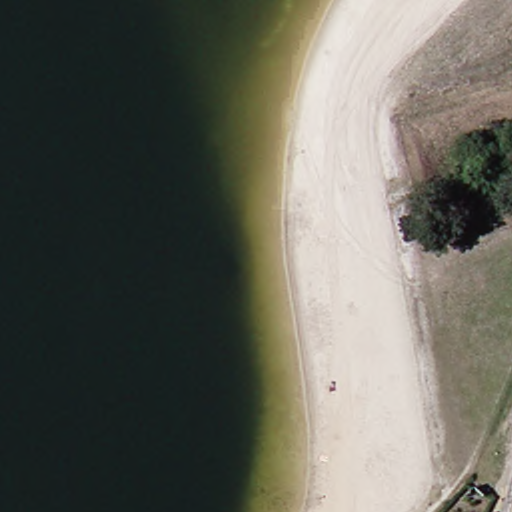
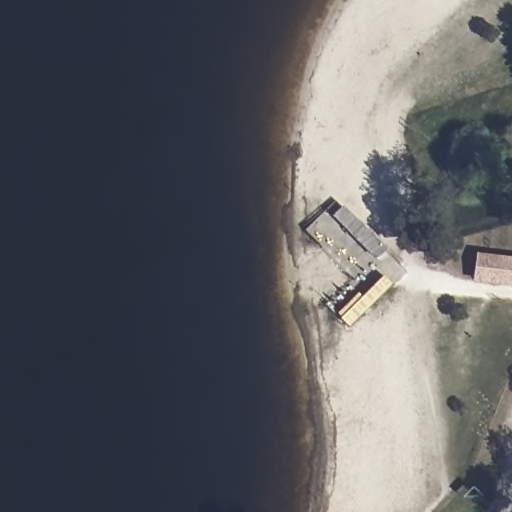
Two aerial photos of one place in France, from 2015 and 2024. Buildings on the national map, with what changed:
new [(477,253),(512,257),(512,288),(473,283),(477,253)]

